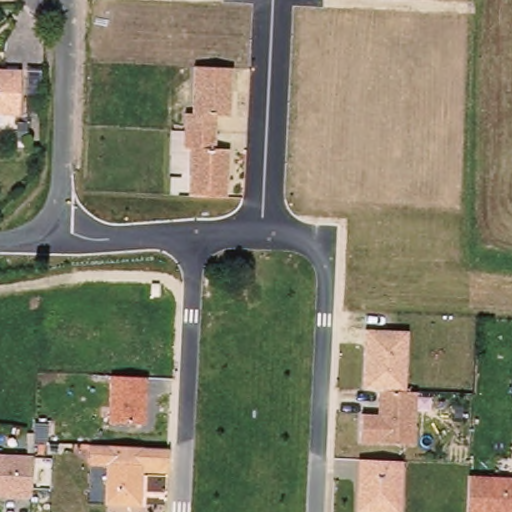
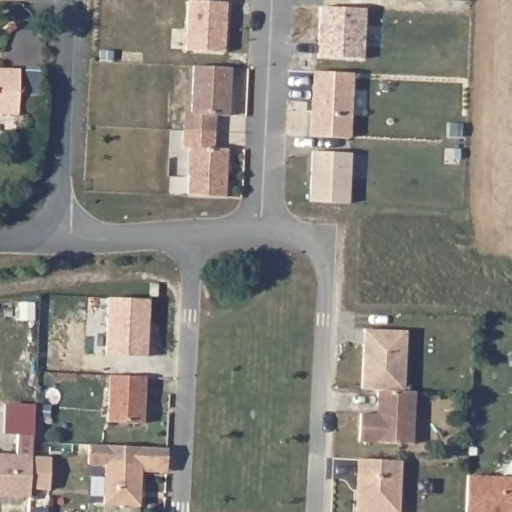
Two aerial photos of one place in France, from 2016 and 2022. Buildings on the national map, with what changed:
new [(225,52),(187,51),(189,0),(227,0),(225,52)]
new [(366,7),(365,57),(320,56),(322,6),(366,7)]
unchanged [(230,115),(217,115),(217,149),(229,150),(226,196),(189,195),(190,149),(184,149),(185,112),(193,112),(194,67),(233,67),(230,115)]
unchanged [(17,117),(0,116),(0,69),(20,70),(17,117)]
new [(355,73),(353,137),(312,137),(315,70),(355,73)]
new [(354,154),(352,202),(313,201),(314,152),(354,154)]
unchanged [(360,441),(362,411),(378,412),(379,388),(363,387),(365,330),(409,332),(406,391),(418,392),(416,442),(360,441)]
unchanged [(145,422),(108,420),(110,376),(148,377),(145,422)]
unchanged [(145,465),(109,465),(90,464),(91,445),(170,449),(169,471),(145,471),(145,465)]
unchanged [(33,496),(0,495),(0,455),(34,455),(33,496)]
unchanged [(358,512),(360,459),(405,462),(405,512),(358,512)]
unchanged [(145,465),(145,507),(107,506),(109,465),(145,465)]
unchanged [(470,512),(471,477),(512,479),(512,512),(470,512)]

